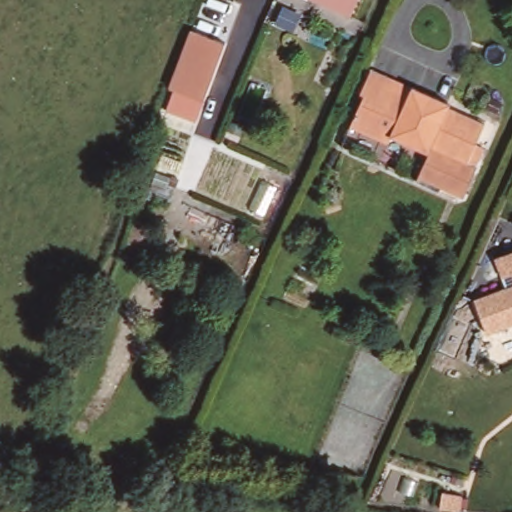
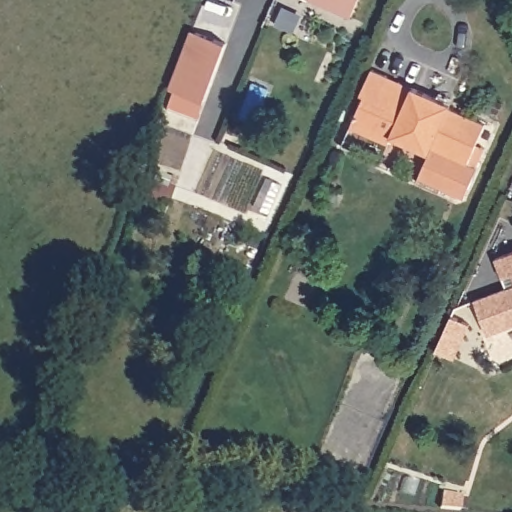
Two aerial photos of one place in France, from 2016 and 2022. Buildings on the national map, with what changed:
unchanged [(354,22),(303,0),(365,0),(354,22)]
unchanged [(229,46),(208,103),(176,92),(197,34),(229,46)]
unchanged [(393,148),(355,130),(379,74),(421,89),(459,109),(487,125),(483,145),(491,149),(485,172),(472,201),(425,182),(436,157),(398,140),(393,148)]
unchanged [(512,258),(512,285),(502,262),(512,258)]
unchanged [(483,304),(512,292),(512,330),(496,336),(483,304)]
unchanged [(397,509),(398,495),(418,495),(417,509),(397,509)]

